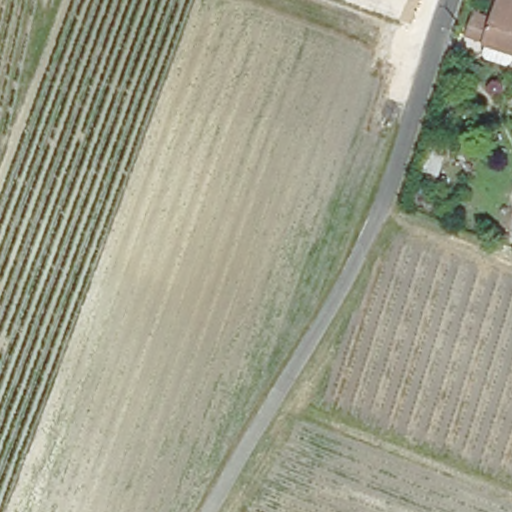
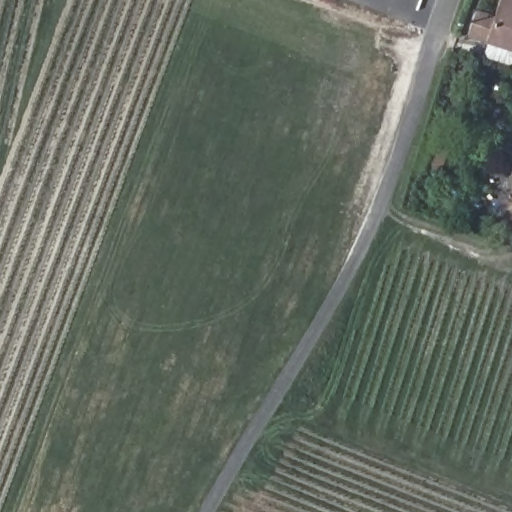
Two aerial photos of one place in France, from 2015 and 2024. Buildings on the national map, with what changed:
unchanged [(465,19),(487,25),(497,0),(512,0),(512,56),(457,39),(465,19)]

